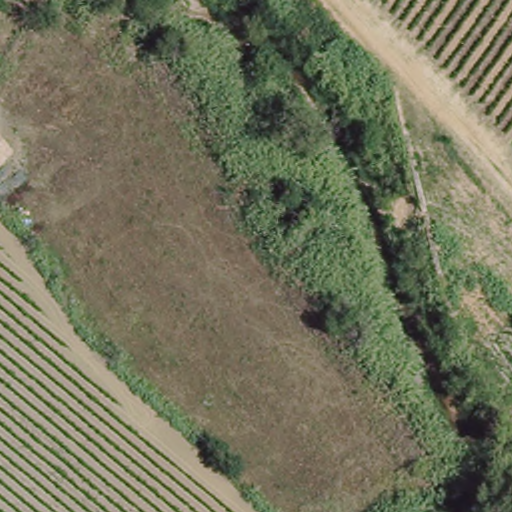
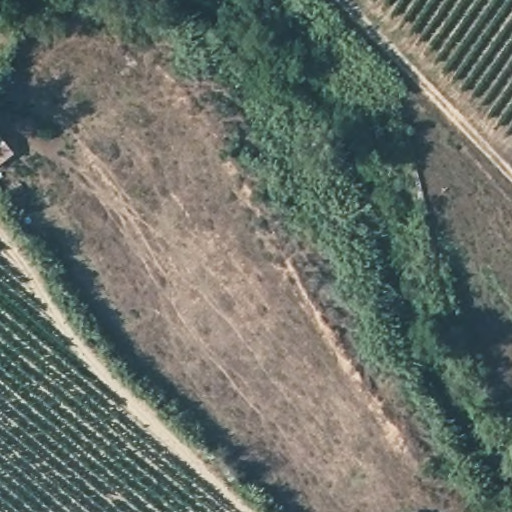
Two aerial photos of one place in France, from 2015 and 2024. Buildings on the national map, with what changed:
unchanged [(14,152),(0,163),(0,135),(14,152)]

